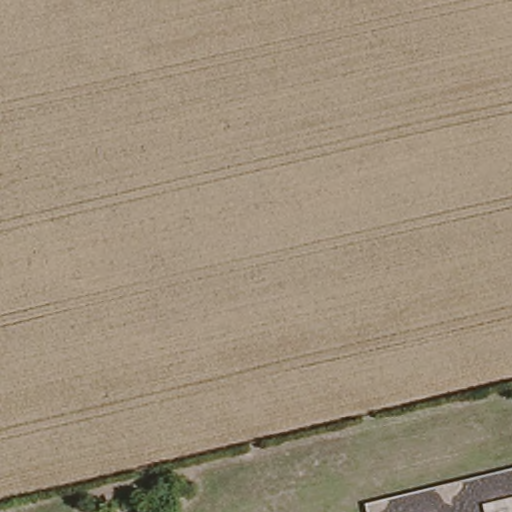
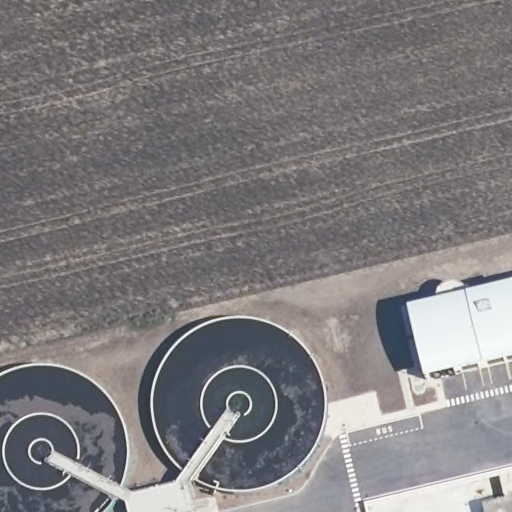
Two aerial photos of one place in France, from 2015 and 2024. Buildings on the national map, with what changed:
new [(460,286),(465,293),(452,298),(466,296),(512,285),(512,362),(426,383),(408,310),(440,303),(440,293),(460,286)]

